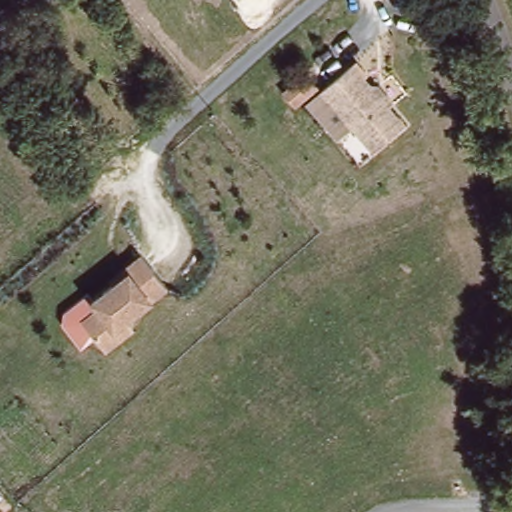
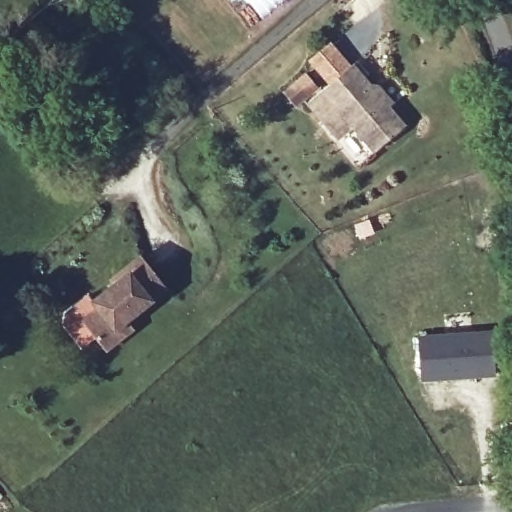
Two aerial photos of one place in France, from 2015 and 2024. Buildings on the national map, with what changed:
new [(248,0),(276,0),(260,14),(248,0)]
unchanged [(375,149),(322,89),(352,63),(372,83),(378,84),(377,90),(405,122),(375,149)]
unchanged [(297,105),(286,90),(305,74),(317,87),(297,105)]
unchanged [(114,284),(115,285),(125,277),(121,273),(142,256),(169,286),(129,318),(135,327),(109,350),(85,321),(112,300),(105,292),(114,284)]
unchanged [(84,296),(96,311),(85,321),(95,334),(80,346),(61,321),(62,312),(84,296)]
new [(496,327),(497,375),(420,381),(416,334),(496,327)]

